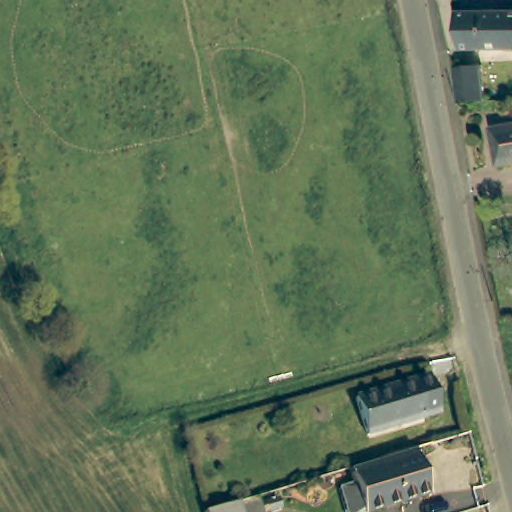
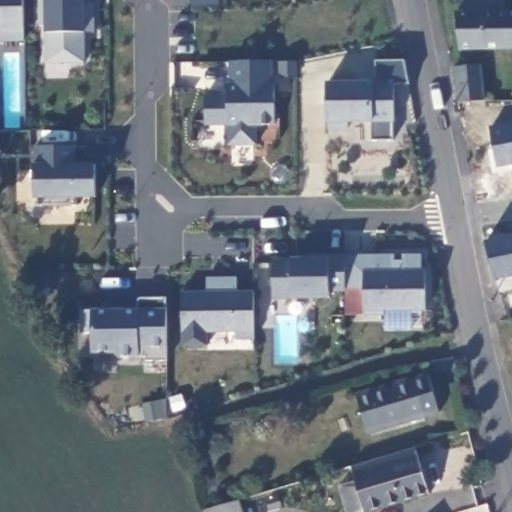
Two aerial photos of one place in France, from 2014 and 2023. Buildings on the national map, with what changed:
new [(24,42),(2,42),(2,29),(0,29),(0,0),(24,0),(24,42)]
new [(87,1),(95,3),(96,33),(87,33),(87,62),(45,63),(45,32),(45,0),(87,0),(87,1)]
new [(221,6),(192,6),(191,0),(220,0),(221,6)]
unchanged [(460,11),(512,11),(512,49),(463,50),(460,11)]
new [(271,82),(276,82),(275,127),(258,127),(258,146),(227,145),(227,125),(204,125),(202,94),(225,94),(226,83),(230,83),(230,60),(272,60),(271,82)]
new [(395,84),(393,140),(371,140),(371,123),(326,123),(325,81),(376,81),(376,61),(402,61),(408,84),(395,84)]
unchanged [(451,68),(478,65),(483,102),(455,105),(451,68)]
unchanged [(489,129),(512,124),(512,165),(496,168),(489,129)]
new [(78,164),(95,164),(96,199),(33,199),(34,146),(76,145),(78,164)]
new [(426,312),(344,313),(345,292),(330,292),(330,299),(291,298),(272,298),(272,257),(291,256),(330,256),(422,253),(426,312)]
new [(206,293),(207,278),(237,278),(237,293),(256,292),(255,333),(207,334),(207,347),(182,347),(181,294),(206,293)]
new [(166,309),(168,348),(167,359),(145,360),(145,356),(138,356),(114,356),(114,351),(90,351),(91,334),(80,333),(81,307),(94,308),(139,306),(139,298),(165,298),(166,309)]
unchanged [(365,396),(423,378),(435,418),(376,435),(365,396)]
unchanged [(345,512),(338,492),(354,487),(350,477),(351,477),(350,472),(355,470),(413,453),(415,457),(416,457),(428,498),(381,512),(345,512)]
unchanged [(263,500),(277,496),(280,508),(267,512),(263,500)]
unchanged [(224,506),(230,504),(235,503),(240,501),(241,501),(245,512),(208,512),(207,511),(224,506)]

